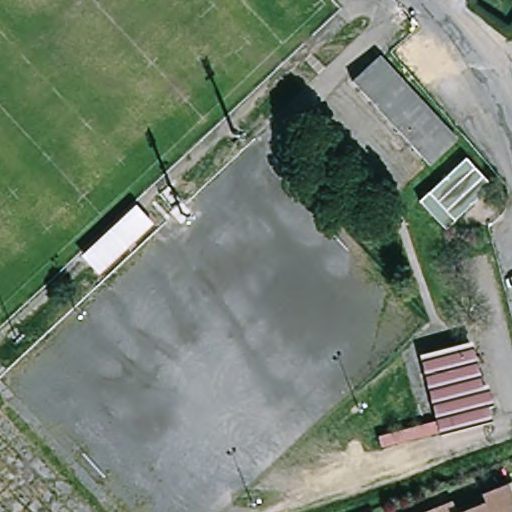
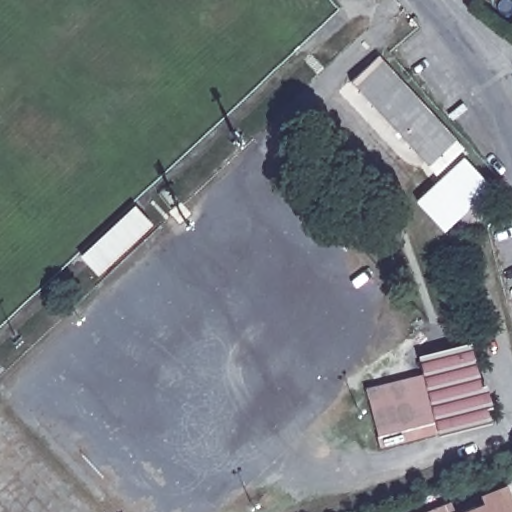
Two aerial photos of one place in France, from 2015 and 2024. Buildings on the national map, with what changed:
unchanged [(456,140),(429,165),(353,82),(380,57),(456,140)]
unchanged [(295,156),(286,165),(275,154),(284,145),(295,156)]
unchanged [(489,185),(443,227),(418,200),(464,159),(489,185)]
unchanged [(135,205),(153,224),(97,275),(80,255),(135,205)]
new [(422,373),(417,355),(472,340),(474,347),(426,358),(443,431),(380,448),(376,437),(377,436),(364,388),(422,373)]
unchanged [(443,434),(426,358),(474,347),(491,423),(443,434)]
unchanged [(481,493),(507,483),(510,493),(512,497),(512,512),(461,512),(485,502),(481,493)]
unchanged [(458,512),(420,512),(452,499),(458,512)]

